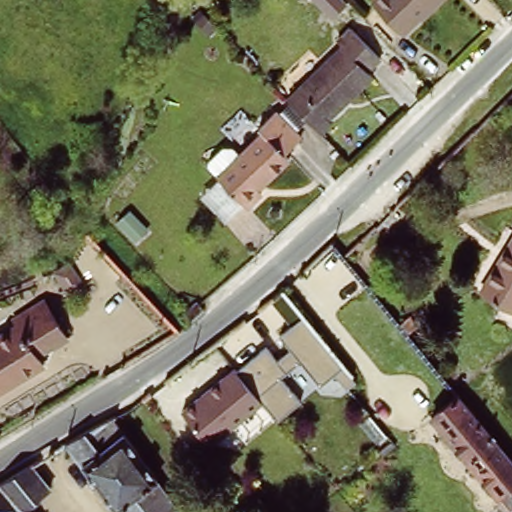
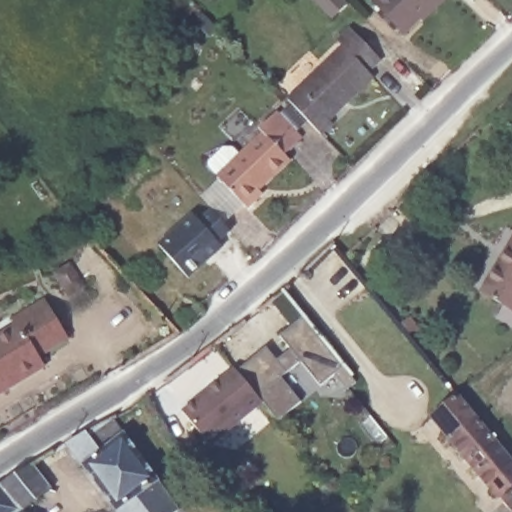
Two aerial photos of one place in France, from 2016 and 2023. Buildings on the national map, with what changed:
unchanged [(373,0),(435,0),(402,31),(373,0)]
unchanged [(344,43),(341,38),(353,27),(381,59),(370,70),(376,76),(330,118),(333,121),(321,132),(289,96),(344,43)]
unchanged [(263,134),(258,129),(274,114),(299,140),(283,155),(288,161),(256,190),(259,193),(245,205),(216,177),(263,134)]
new [(216,241),(221,247),(188,279),(158,244),(193,213),(198,220),(211,209),(231,233),(216,241)]
unchanged [(494,253),(512,225),(512,302),(477,282),(494,253)]
unchanged [(40,353),(47,363),(0,393),(0,341),(22,327),(16,318),(47,299),(69,335),(40,353)]
unchanged [(186,326),(179,317),(196,302),(204,311),(186,326)]
unchanged [(232,367),(234,370),(264,347),(273,359),(288,347),(279,334),(303,317),(356,384),(348,389),(334,375),(320,385),(299,362),(279,378),(298,400),(276,417),(263,401),(210,443),(181,408),(232,367)]
unchanged [(512,489),(510,487),(496,497),(427,412),(453,388),(512,461),(512,489)]
unchanged [(176,507),(169,512),(118,512),(63,437),(109,411),(176,507)]
unchanged [(46,484),(18,505),(0,486),(0,474),(27,458),(46,484)]
unchanged [(18,505),(25,512),(0,512),(0,486),(18,505)]

